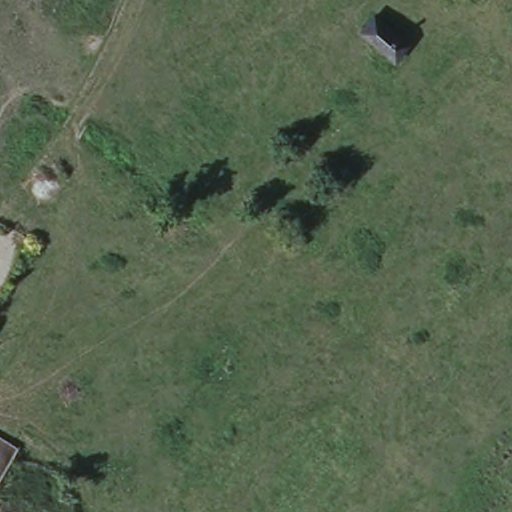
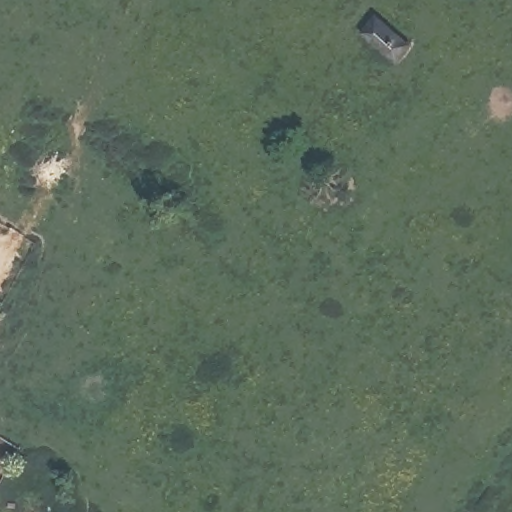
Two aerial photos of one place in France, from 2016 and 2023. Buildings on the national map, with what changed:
unchanged [(357,26),(372,6),(404,32),(411,39),(395,57),(357,26)]

